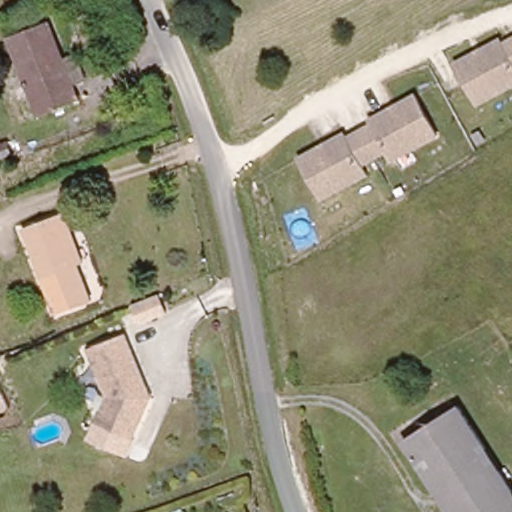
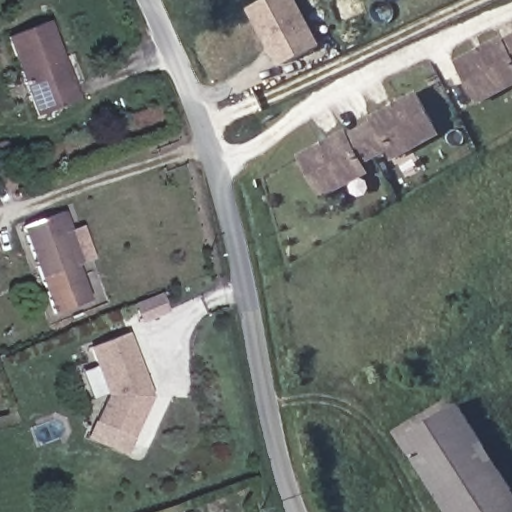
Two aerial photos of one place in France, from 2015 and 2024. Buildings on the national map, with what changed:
new [(277,0),(297,0),(324,47),(290,66),(277,43),(274,45),(255,12),(277,0)]
unchanged [(43,15),(58,52),(71,46),(81,72),(67,77),(75,96),(34,112),(3,31),(43,15)]
unchanged [(500,35),(512,29),(512,75),(475,95),(453,56),(497,31),(500,35)]
unchanged [(344,134),(347,138),(372,123),(370,119),(414,93),(437,133),(392,158),(387,149),(361,164),(367,173),(322,199),(300,159),(344,134)]
unchanged [(56,313),(25,226),(64,212),(71,232),(81,259),(75,261),(89,300),(56,313)]
unchanged [(139,301),(160,292),(168,311),(142,322),(134,303),(134,302),(139,301)]
unchanged [(125,442),(90,425),(104,396),(86,341),(122,329),(146,399),(125,442)]
unchanged [(512,483),(512,512),(450,512),(402,439),(458,402),(466,414),(512,483)]

